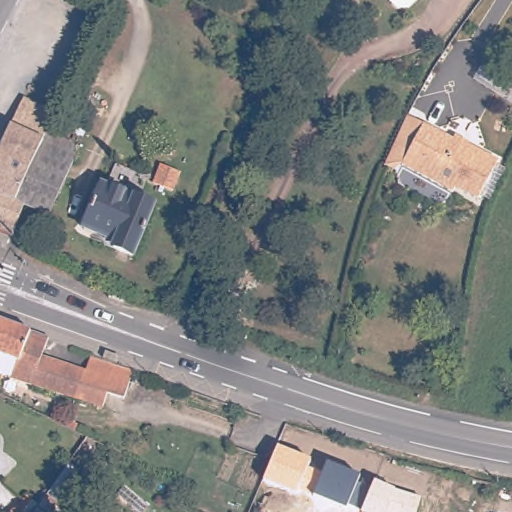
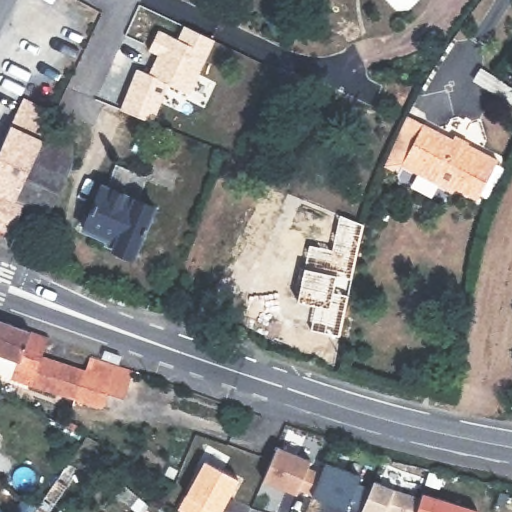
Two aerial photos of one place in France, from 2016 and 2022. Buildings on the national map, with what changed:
new [(188,94),(166,84),(151,122),(121,109),(137,67),(149,73),(158,55),(148,50),(158,29),(177,38),(184,24),(215,40),(188,94)]
unchanged [(23,92),(56,108),(47,127),(14,196),(24,200),(13,231),(0,226),(0,143),(23,92)]
unchanged [(475,140),(508,156),(489,196),(465,185),(463,190),(411,164),(403,170),(396,165),(404,146),(419,116),(430,122),(473,143),(475,140)]
unchanged [(14,196),(47,127),(72,139),(74,155),(48,211),(24,200),(14,196)]
unchanged [(107,175),(158,197),(137,247),(107,234),(110,229),(87,219),(107,175)]
unchanged [(127,391),(112,385),(107,401),(15,374),(15,371),(0,366),(0,314),(52,333),(46,352),(88,365),(94,348),(121,358),(137,365),(127,391)]
unchanged [(360,512),(361,509),(348,503),(346,509),(313,496),(314,495),(298,488),(297,494),(261,481),(276,446),(311,459),(308,465),(323,471),(326,462),(359,476),(356,482),(370,487),(373,480),(393,489),(421,497),(422,492),(478,509),(477,512),(360,512)]
new [(205,460),(237,480),(221,512),(185,512),(179,509),(187,493),(205,460)]
demolished [(38,504),(69,461),(84,474),(57,512),(9,512),(23,493),(38,504)]

